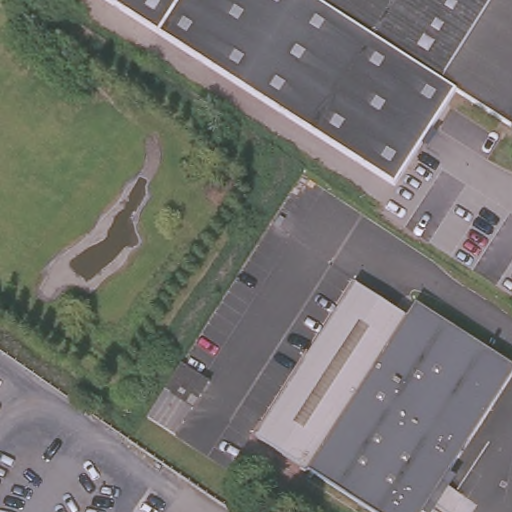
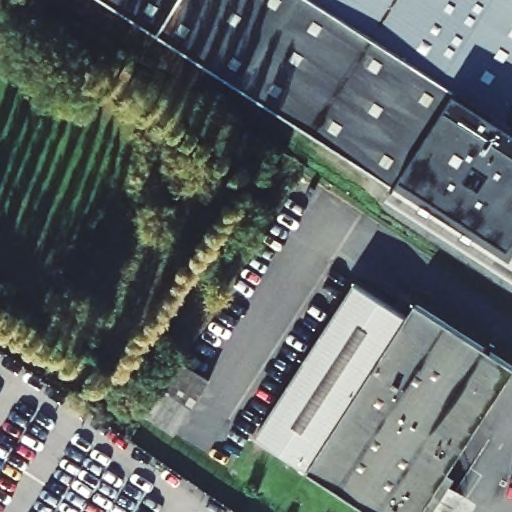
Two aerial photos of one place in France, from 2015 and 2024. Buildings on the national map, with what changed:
unchanged [(150,37),(94,0),(174,0),(150,37)]
unchanged [(447,92),(445,99),(387,191),(150,37),(174,0),(304,0),(447,92)]
unchanged [(448,95),(445,99),(447,92),(304,0),(512,0),(512,136),(448,95)]
new [(407,159),(445,99),(448,95),(512,136),(512,279),(382,196),(387,191),(407,159)]
unchanged [(413,305),(510,370),(417,512),(369,512),(253,435),(352,284),(405,317),(413,305)]
unchanged [(188,407),(170,433),(144,415),(160,389),(188,407)]

